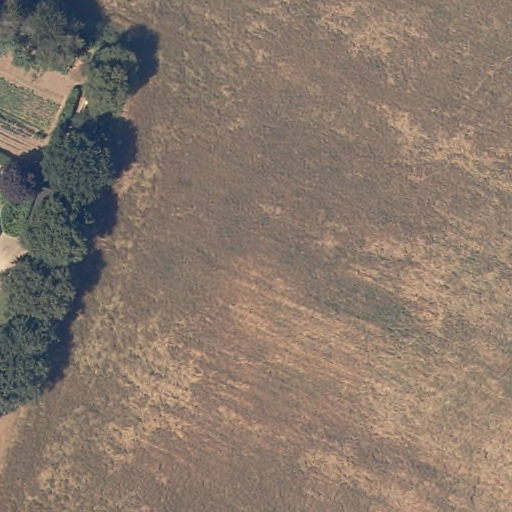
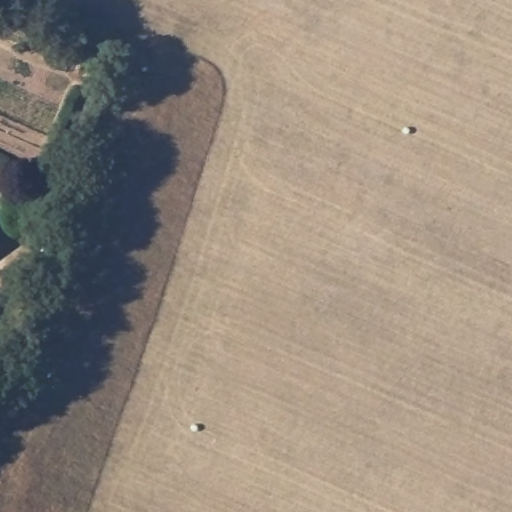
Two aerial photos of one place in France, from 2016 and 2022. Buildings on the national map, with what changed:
unchanged [(38,184),(58,191),(48,218),(28,211),(30,208),(38,184)]

